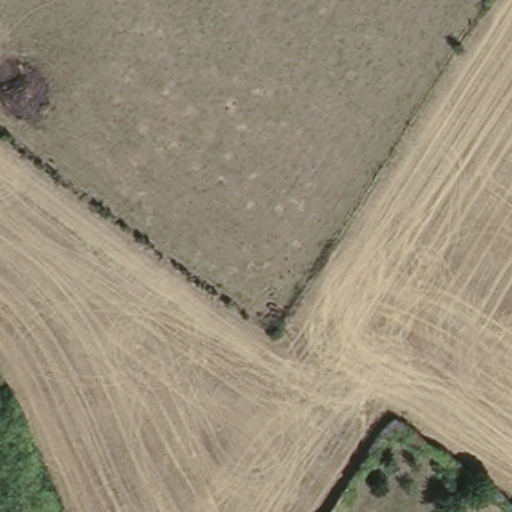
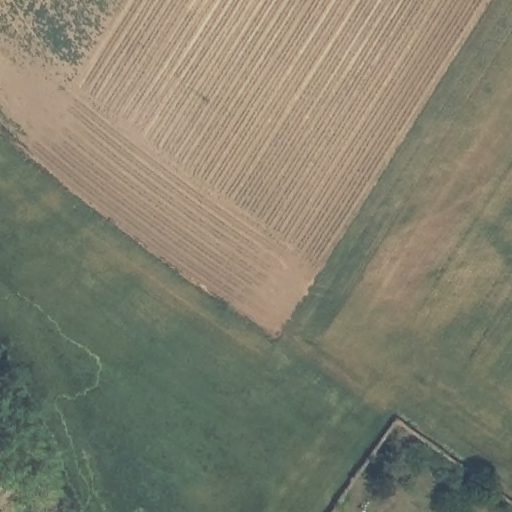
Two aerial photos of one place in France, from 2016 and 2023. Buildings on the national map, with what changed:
[]

